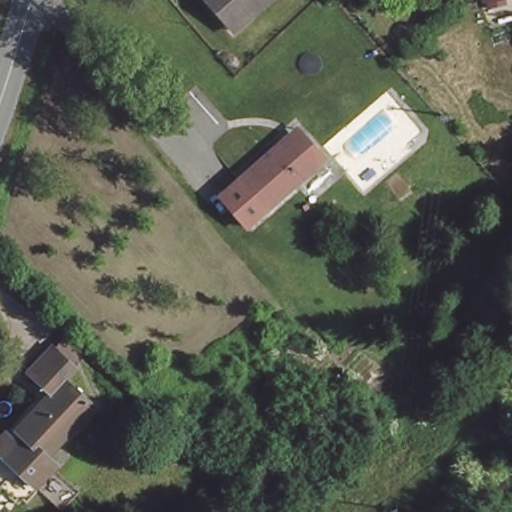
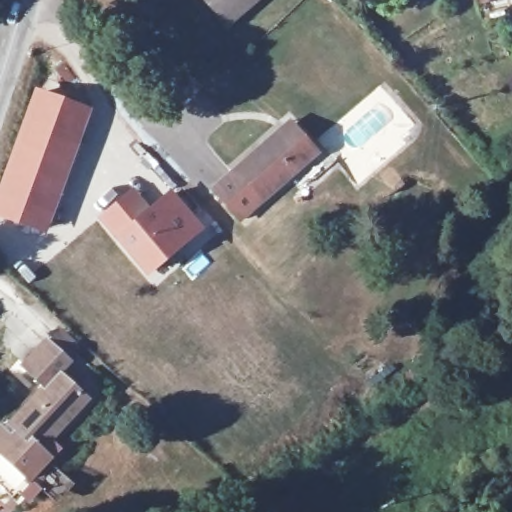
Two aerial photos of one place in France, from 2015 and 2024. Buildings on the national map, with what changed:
unchanged [(256,0),(237,16),(227,24),(213,9),(206,0),(256,0)]
new [(47,237),(0,219),(0,179),(35,88),(92,111),(47,237)]
unchanged [(287,122),(303,142),(315,154),(303,164),(302,165),(236,221),(208,189),(275,132),(287,122)]
new [(202,234),(148,281),(95,219),(132,188),(150,209),(170,194),(202,234)]
unchanged [(0,421),(2,417),(7,425),(44,382),(18,366),(47,335),(77,356),(63,371),(93,397),(45,443),(60,455),(35,478),(0,449),(0,421)]

